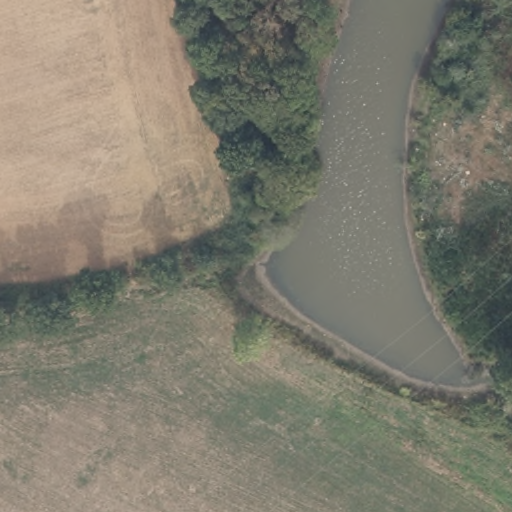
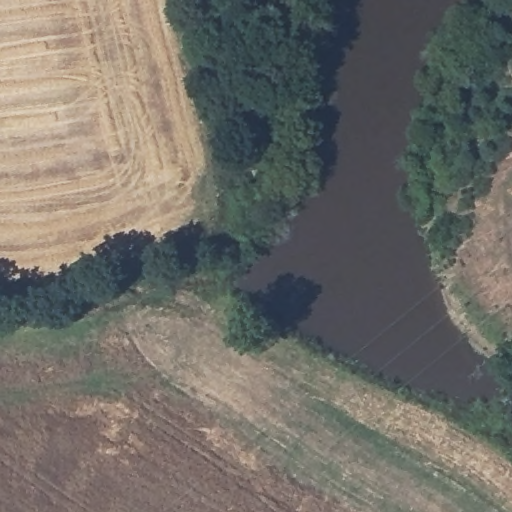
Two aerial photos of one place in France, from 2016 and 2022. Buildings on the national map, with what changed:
[]

